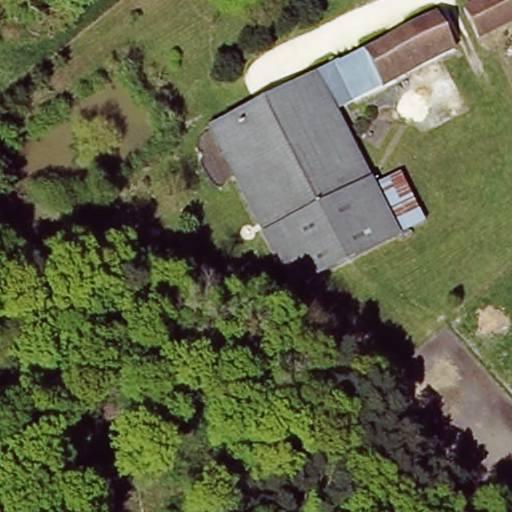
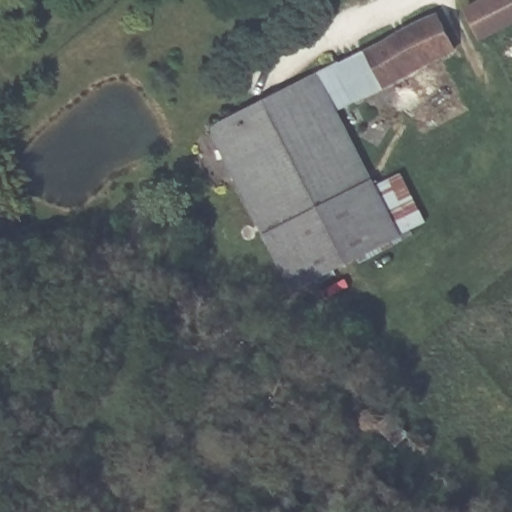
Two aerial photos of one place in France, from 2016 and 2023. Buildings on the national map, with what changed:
unchanged [(482,0),(512,0),(512,27),(475,45),(459,11),(482,0)]
unchanged [(442,15),(462,56),(385,90),(365,51),(442,15)]
unchanged [(365,51),(385,90),(353,105),(334,65),(365,51)]
unchanged [(334,65),(353,105),(337,113),(372,186),(396,237),(391,240),(287,287),(210,124),(334,65)]
unchanged [(372,186),(402,171),(425,227),(396,237),(372,186)]

